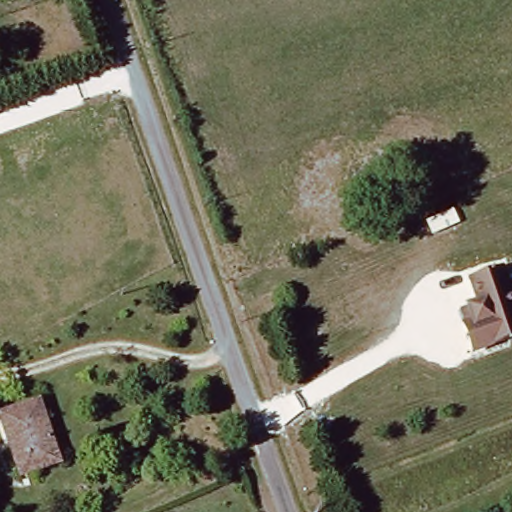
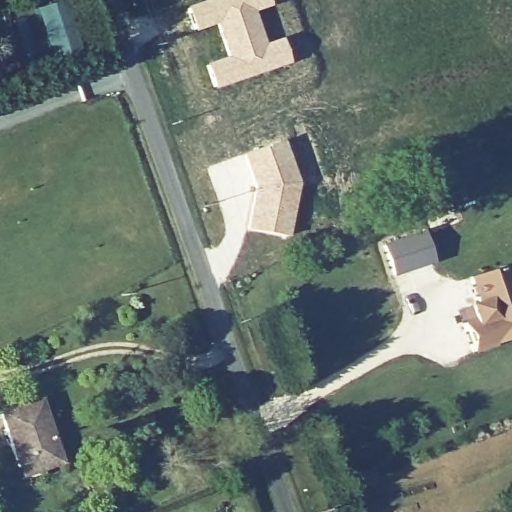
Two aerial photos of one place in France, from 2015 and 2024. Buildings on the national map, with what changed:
new [(266,0),(268,7),(252,13),(263,43),(279,38),(287,65),(212,90),(203,63),(223,56),(213,26),(192,32),(183,5),(199,0),(266,0)]
new [(280,139),(296,184),(286,239),(242,230),(247,194),(219,202),(206,166),(280,139)]
new [(419,227),(433,264),(393,277),(380,241),(419,227)]
unchanged [(512,304),(497,267),(512,260),(512,304)]
unchanged [(461,326),(471,322),(465,308),(475,304),(466,279),(497,267),(512,304),(512,337),(472,353),(461,326)]
unchanged [(18,477),(0,419),(0,414),(41,400),(62,464),(18,477)]

